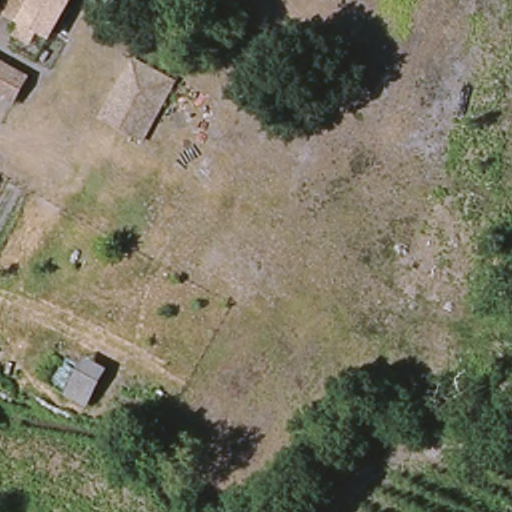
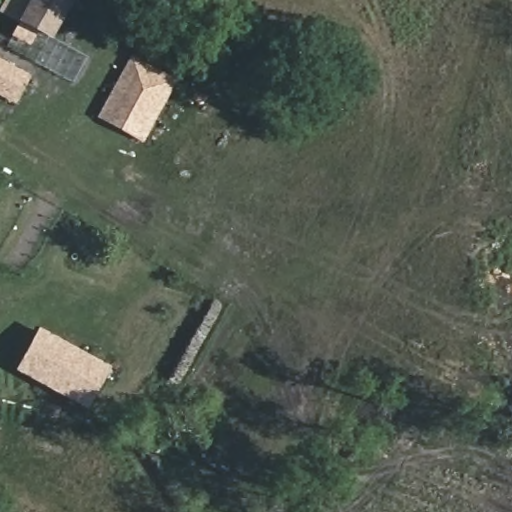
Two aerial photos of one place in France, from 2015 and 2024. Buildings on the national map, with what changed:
unchanged [(33,19),(25,34),(10,26),(17,13),(0,4),(0,3),(2,0),(60,0),(46,25),(33,19)]
unchanged [(130,60),(138,64),(172,81),(170,84),(140,141),(138,144),(97,124),(97,123),(130,60)]
unchanged [(12,100),(0,94),(0,71),(23,83),(12,100)]
new [(103,368),(85,400),(16,364),(34,331),(103,368)]
demolished [(98,381),(87,407),(63,394),(76,371),(98,381)]

